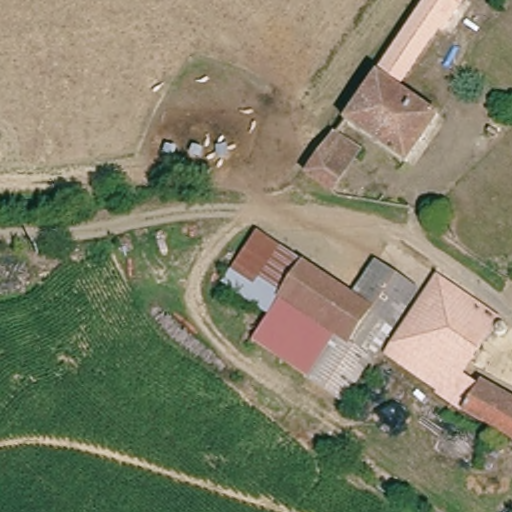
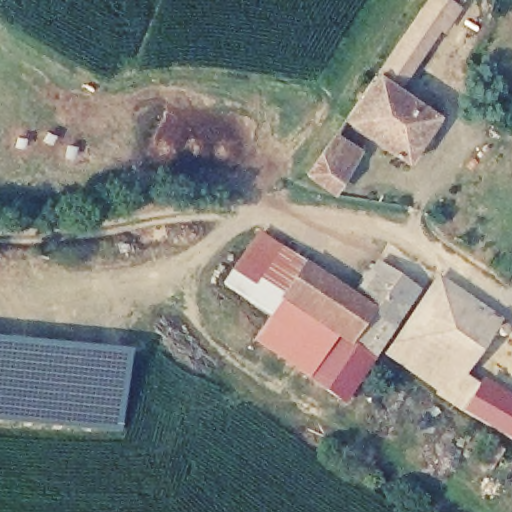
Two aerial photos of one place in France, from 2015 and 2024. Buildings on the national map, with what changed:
unchanged [(451,0),(453,1),(396,91),(440,120),(411,166),(351,123),(433,0),(451,0)]
unchanged [(335,135),(356,150),(334,188),(312,173),(335,135)]
unchanged [(293,291),(276,317),(230,287),(245,263),(263,236),(292,255),(310,266),(293,291)]
unchanged [(380,264),(420,290),(371,365),(348,400),(315,378),(328,358),(341,338),(351,344),(374,309),(357,298),(380,264)]
unchanged [(374,309),(351,344),(341,338),(328,358),(315,378),(260,342),(276,317),(293,291),(310,266),(357,298),(374,309)]
unchanged [(469,374),(512,404),(512,441),(447,400),(391,353),(442,276),(504,318),(469,374)]
new [(0,422),(0,340),(127,352),(118,435),(0,422)]

